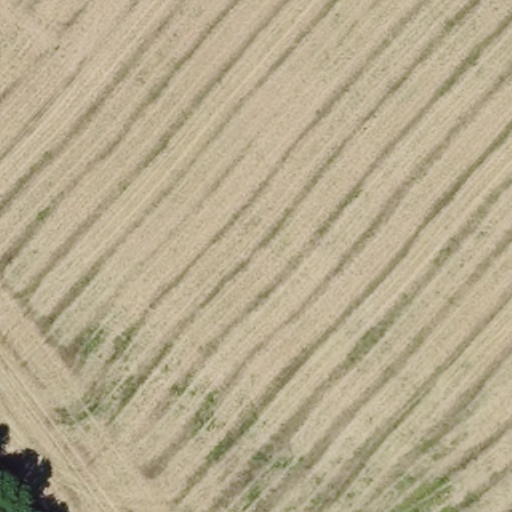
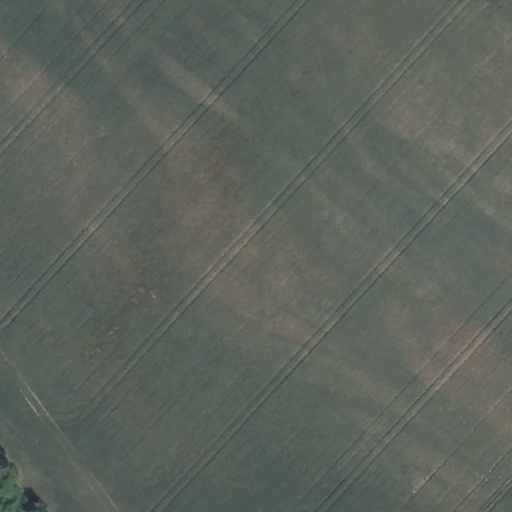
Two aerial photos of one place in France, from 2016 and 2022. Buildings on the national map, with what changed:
[]

